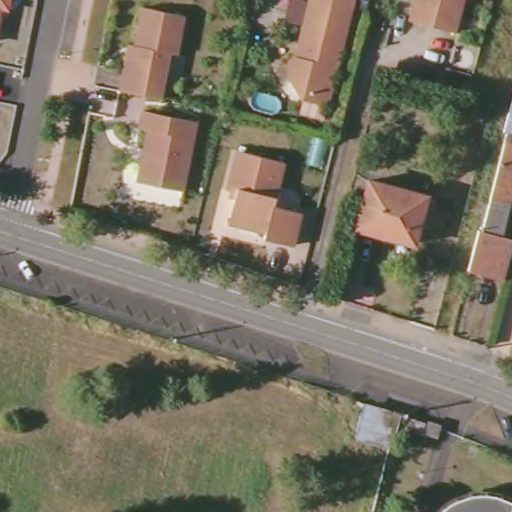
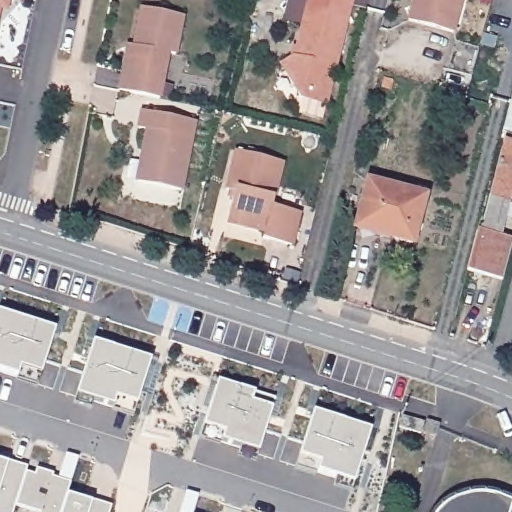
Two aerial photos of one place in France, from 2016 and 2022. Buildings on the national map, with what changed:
unchanged [(2,11),(0,20),(0,0),(12,0),(10,12),(2,11)]
unchanged [(303,100),(307,86),(286,52),(300,44),(310,0),(354,0),(327,106),(303,100)]
unchanged [(410,22),(415,0),(463,0),(455,33),(410,22)]
unchanged [(128,50),(134,50),(142,6),(183,15),(176,53),(169,51),(160,96),(120,89),(128,50)]
unchanged [(509,184),(498,227),(510,231),(499,273),(467,265),(478,223),(480,224),(507,125),(504,124),(512,91),(512,185),(509,184)]
unchanged [(196,119),(182,187),(138,179),(148,127),(140,125),(143,109),(196,119)]
unchanged [(283,161),(272,205),(300,212),(292,245),(263,238),(265,231),(234,223),(230,215),(236,191),(227,189),(237,150),(283,161)]
unchanged [(425,195),(415,244),(390,239),(392,234),(356,226),(367,181),(425,195)]
new [(23,369),(20,377),(0,371),(0,312),(57,330),(44,375),(23,369)]
new [(117,407),(80,396),(96,342),(154,360),(140,405),(137,414),(117,407)]
new [(41,384),(20,377),(23,369),(44,375),(41,384)]
new [(205,425),(218,380),(277,398),(260,452),(223,440),(202,434),(205,425)]
demolished [(395,415),(385,445),(353,436),(362,405),(395,415)]
new [(300,455),(314,410),(372,428),(355,481),(318,470),(297,463),(300,455)]
unchanged [(420,424),(417,435),(397,428),(400,418),(420,424)]
unchanged [(436,428),(433,436),(420,431),(423,422),(436,428)]
new [(72,481),(60,477),(67,453),(80,457),(72,481)]
new [(0,460),(7,462),(8,460),(28,467),(14,512),(0,512),(0,460)]
new [(27,472),(35,475),(37,468),(54,474),(53,477),(71,483),(62,512),(37,512),(16,505),(25,476),(27,472)]
new [(194,512),(181,512),(187,492),(200,495),(194,512)]
new [(110,512),(62,512),(67,495),(91,502),(92,500),(112,506),(110,512)]
unchanged [(485,504),(488,504),(492,505),(497,506),(501,507),(512,511),(512,512),(442,512),(445,510),(449,507),(458,505),(465,503),(470,503),(475,503),(480,503),(485,504)]

